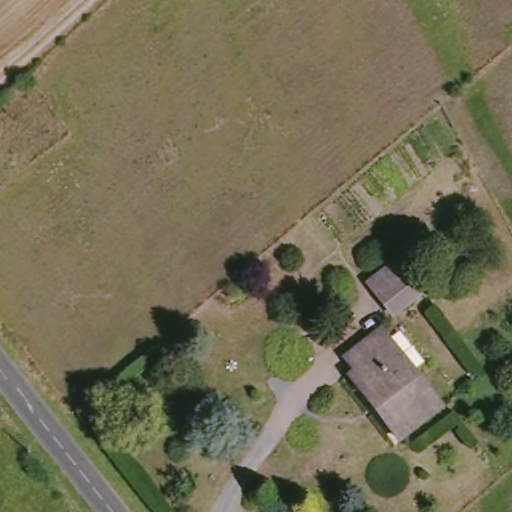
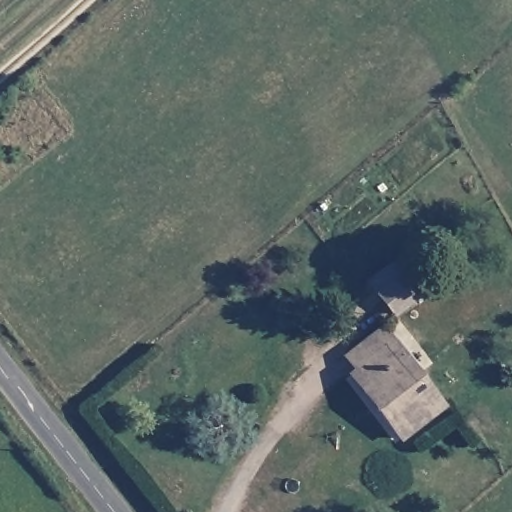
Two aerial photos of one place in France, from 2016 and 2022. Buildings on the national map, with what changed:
unchanged [(397,260),(422,291),(393,314),(369,283),(397,260)]
unchanged [(358,369),(350,358),(387,330),(448,406),(404,439),(351,373),(358,369)]

